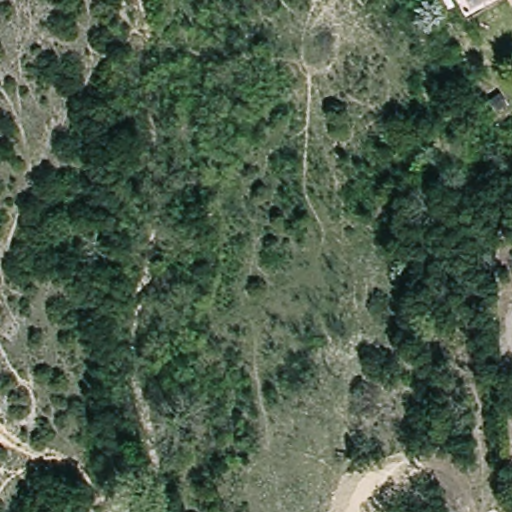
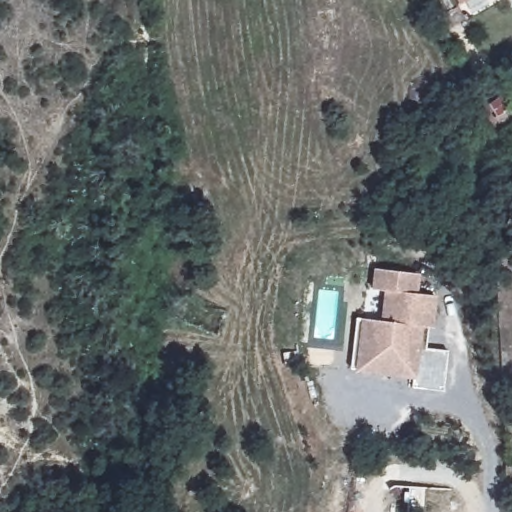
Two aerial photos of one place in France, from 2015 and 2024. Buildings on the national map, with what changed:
unchanged [(455,4),(453,0),(461,0),(455,4)]
new [(442,369),(440,391),(408,387),(410,376),(354,369),(346,368),(352,318),(379,322),(383,291),(370,289),(372,268),(414,273),(411,292),(431,295),(427,327),(425,327),(422,348),(445,351),(442,369)]

